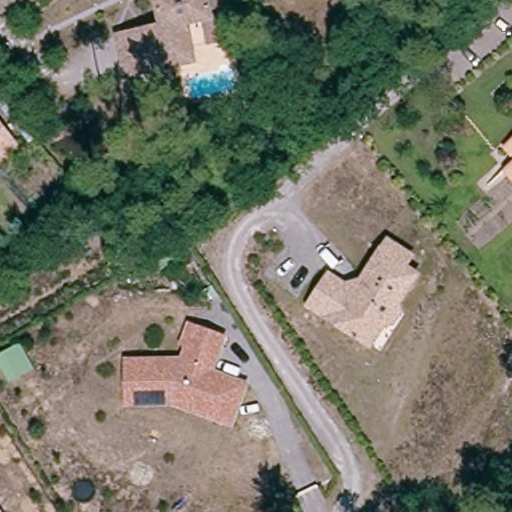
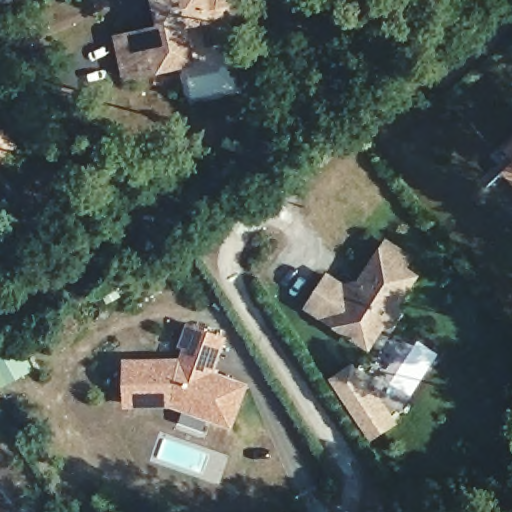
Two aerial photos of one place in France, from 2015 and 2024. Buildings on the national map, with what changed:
unchanged [(205,20),(189,22),(197,66),(126,79),(119,37),(161,27),(157,0),(242,0),(247,4),(235,25),(239,39),(210,45),(205,20)]
unchanged [(0,123),(18,145),(0,160),(0,123)]
unchanged [(355,338),(352,337),(354,333),(311,303),(316,296),(331,275),(343,282),(357,292),(362,285),(361,277),(387,240),(410,255),(402,266),(414,274),(396,301),(397,309),(388,322),(380,323),(358,335),(355,338)]
unchanged [(234,421),(216,415),(176,400),(131,400),(131,359),(184,358),(189,361),(195,344),(188,342),(194,323),(227,335),(215,371),(230,376),(248,382),(234,421)]
new [(376,392),(379,390),(399,425),(372,442),(329,379),(355,363),(376,392)]
unchanged [(25,511),(25,512),(22,512),(25,511)]

